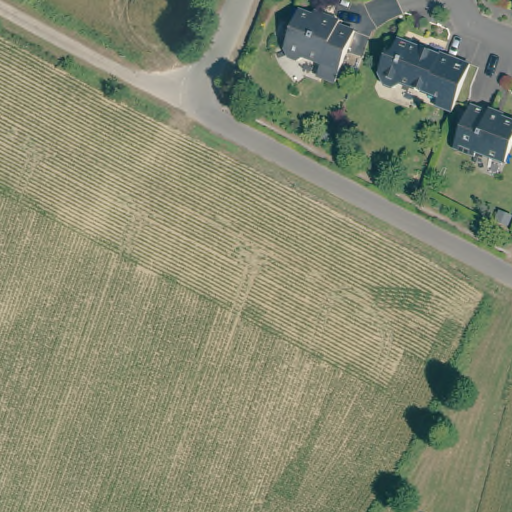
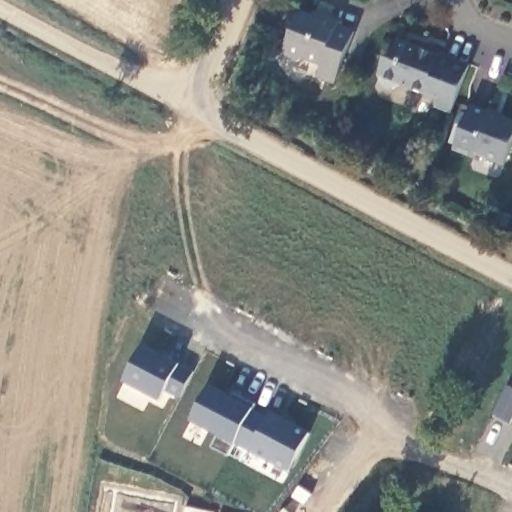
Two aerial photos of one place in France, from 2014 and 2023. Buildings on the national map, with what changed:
unchanged [(318,76),(323,65),(307,59),(301,61),(288,56),(286,51),(301,11),(320,18),(321,15),(341,22),(339,26),(355,32),(336,83),(318,76)]
unchanged [(435,107),(438,98),(403,85),(395,89),(384,85),(380,76),(387,57),(393,54),(399,40),(440,56),(441,54),(471,65),(456,105),(452,114),(435,107)]
unchanged [(471,106),(512,122),(512,148),(507,163),(477,151),(476,158),(455,150),(471,106)]
new [(181,397),(166,390),(161,400),(125,380),(144,344),(195,371),(181,397)]
new [(212,446),(218,434),(192,420),(210,384),(232,396),(235,392),(257,403),(229,455),(212,446)]
new [(509,385),(512,386),(512,422),(512,423),(493,413),(509,385)]
new [(268,417),(271,412),(310,433),(290,470),(237,442),(253,410),(268,417)]

